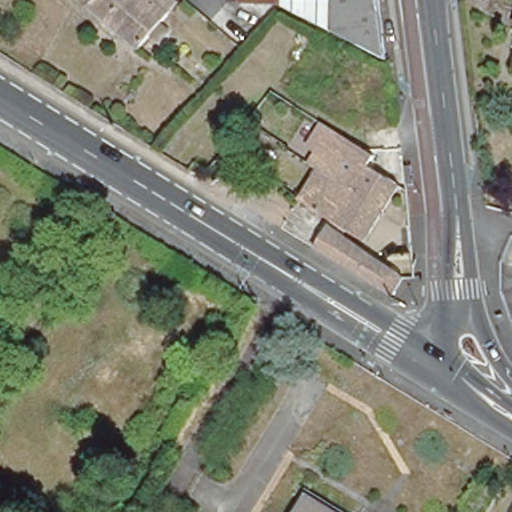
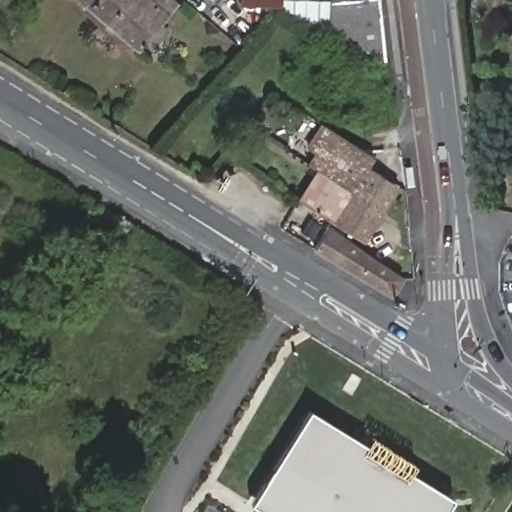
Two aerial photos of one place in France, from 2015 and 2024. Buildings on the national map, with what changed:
unchanged [(139,47),(87,4),(89,1),(88,0),(172,0),(177,4),(139,47)]
unchanged [(240,0),(281,0),(281,5),(240,6),(240,0)]
unchanged [(281,5),(281,0),(312,0),(312,21),(281,5)]
unchanged [(380,0),(389,62),(312,21),(312,0),(380,0)]
unchanged [(302,200),(340,132),(357,143),(351,155),(402,183),(369,240),(302,200)]
unchanged [(328,228),(402,276),(392,295),(315,248),(328,228)]
new [(443,493),(431,512),(273,512),(255,501),(309,412),(443,493)]
demolished [(312,497),(337,512),(303,512),(312,497)]

